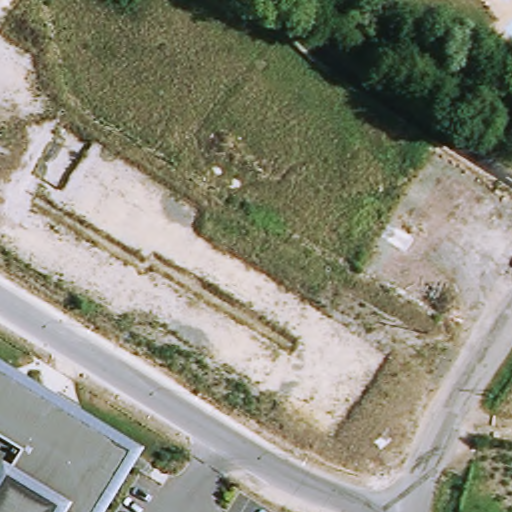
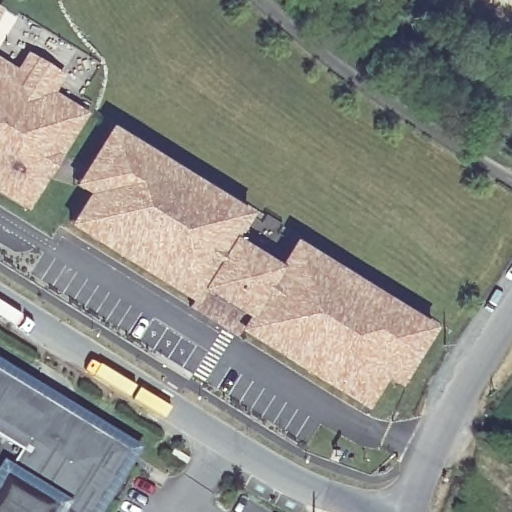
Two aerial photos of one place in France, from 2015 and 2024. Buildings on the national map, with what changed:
new [(67,118),(0,76),(0,62),(15,71),(26,55),(61,76),(50,93),(85,114),(26,209),(0,193),(0,179),(22,193),(67,118)]
new [(22,193),(0,179),(0,76),(67,118),(22,193)]
new [(65,227),(85,195),(71,186),(108,128),(249,215),(234,241),(275,267),(291,240),(432,329),(396,387),(382,379),(362,410),(239,334),(235,337),(189,309),(193,304),(65,227)]
unchanged [(104,512),(0,512),(0,363),(142,450),(104,512)]

